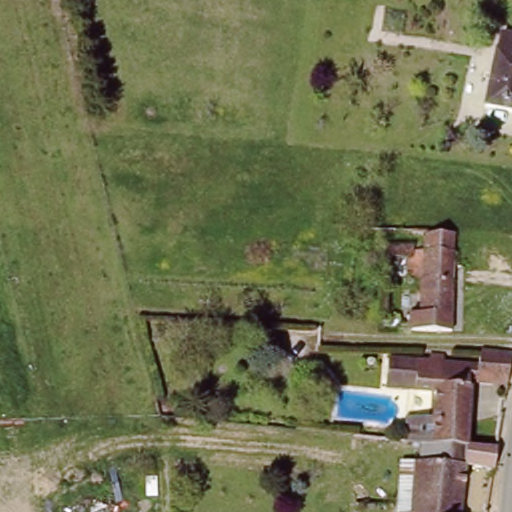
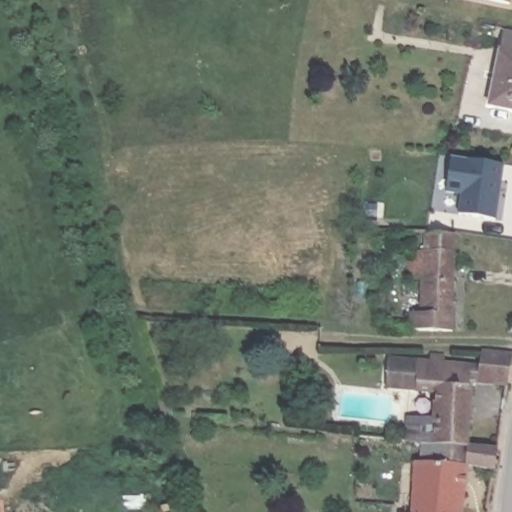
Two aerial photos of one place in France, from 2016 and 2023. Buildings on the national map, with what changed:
new [(494,0),(510,0),(509,3),(494,0)]
unchanged [(512,117),(486,111),(501,40),(512,43),(512,117)]
new [(502,165),(494,223),(456,217),(460,195),(446,192),(451,159),(502,165)]
unchanged [(418,322),(417,300),(425,301),(425,270),(415,269),(413,245),(431,244),(430,223),(455,225),(455,242),(458,328),(437,327),(436,321),(418,322)]
unchanged [(512,366),(507,384),(480,380),(482,355),(512,356),(512,366)]
unchanged [(425,425),(438,425),(440,384),(430,383),(433,365),(471,368),(470,442),(423,438),(425,425)]
unchanged [(421,459),(423,438),(470,442),(486,444),(488,433),(498,434),(496,445),(493,475),(467,472),(463,512),(410,512),(417,458),(421,459)]

